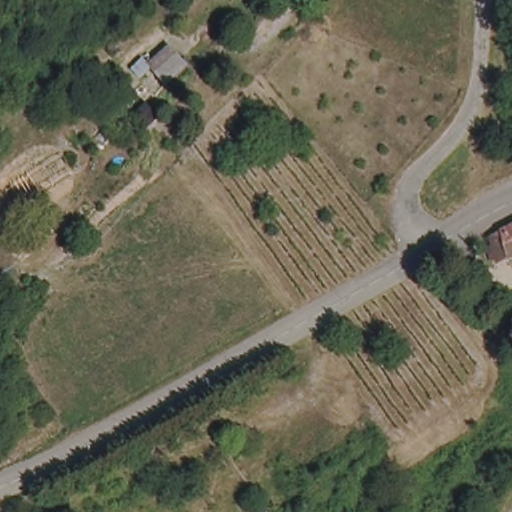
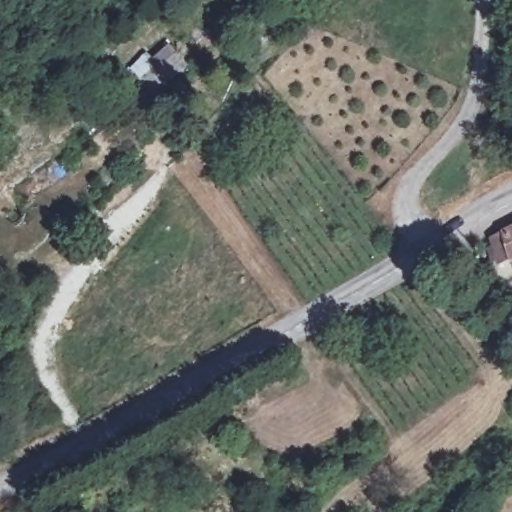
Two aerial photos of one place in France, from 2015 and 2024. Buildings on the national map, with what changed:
unchanged [(165,82),(148,61),(174,45),(192,67),(165,82)]
unchanged [(512,220),(512,249),(508,250),(501,226),(512,220)]
unchanged [(512,402),(512,412),(508,406),(512,402)]

